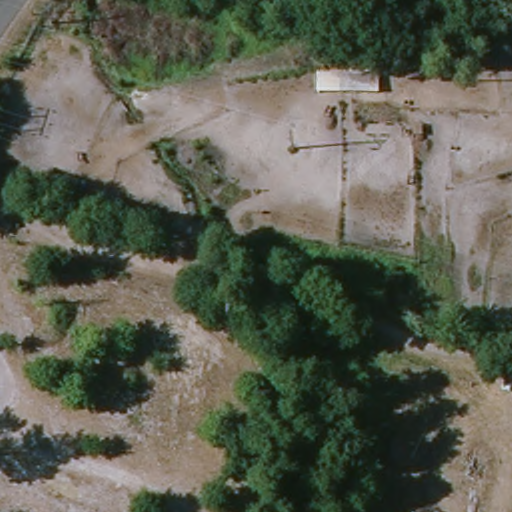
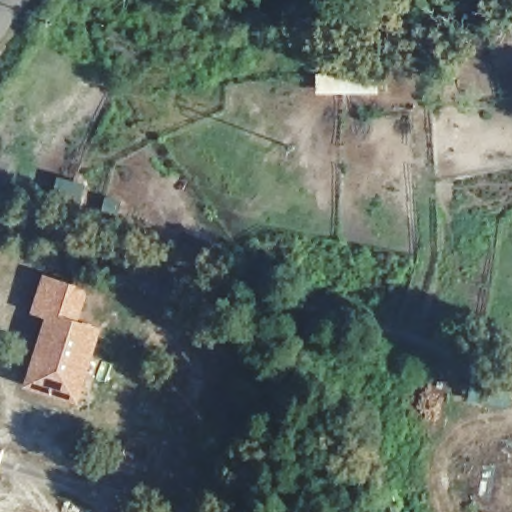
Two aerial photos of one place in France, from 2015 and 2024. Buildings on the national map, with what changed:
new [(85,291),(78,321),(104,328),(81,406),(24,389),(47,315),(36,312),(47,278),(85,291)]

